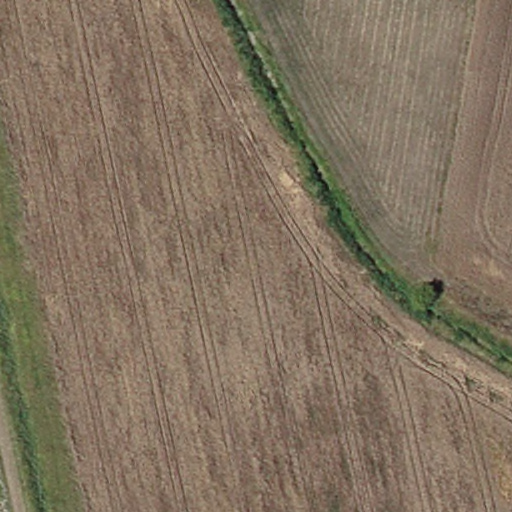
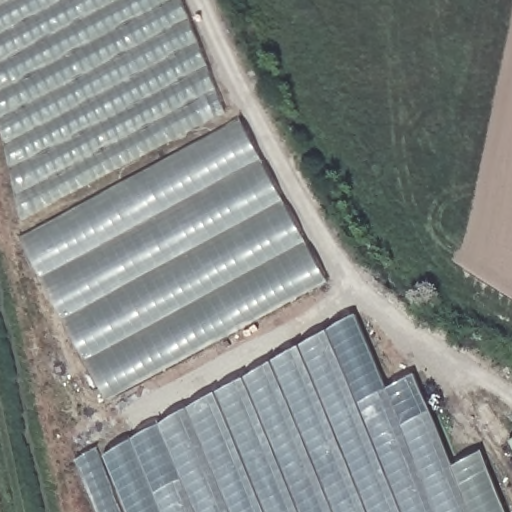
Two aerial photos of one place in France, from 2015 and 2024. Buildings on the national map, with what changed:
new [(226,112),(22,221),(0,115),(0,0),(185,0),(226,112)]
new [(327,282),(109,400),(20,237),(240,117),(327,282)]
new [(95,449),(102,457),(357,318),(386,389),(416,372),(455,465),(481,453),(506,512),(93,512),(71,460),(95,449)]

